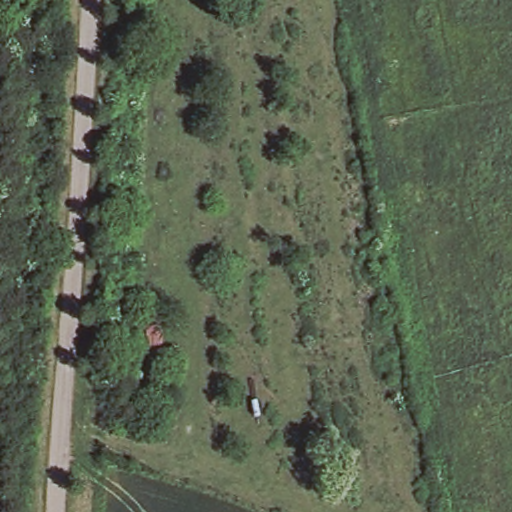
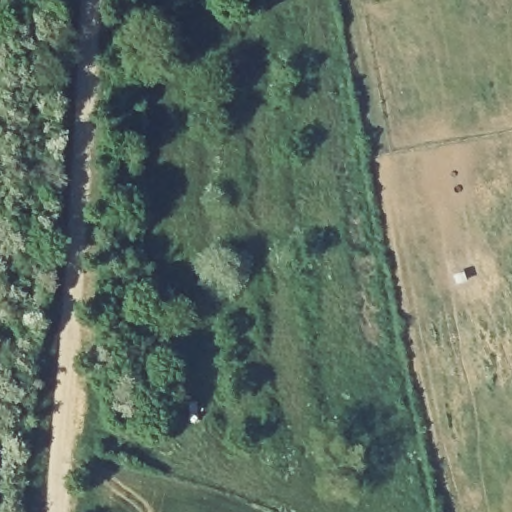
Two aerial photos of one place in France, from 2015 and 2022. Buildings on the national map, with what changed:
unchanged [(161,364),(135,364),(135,309),(163,308),(161,364)]

